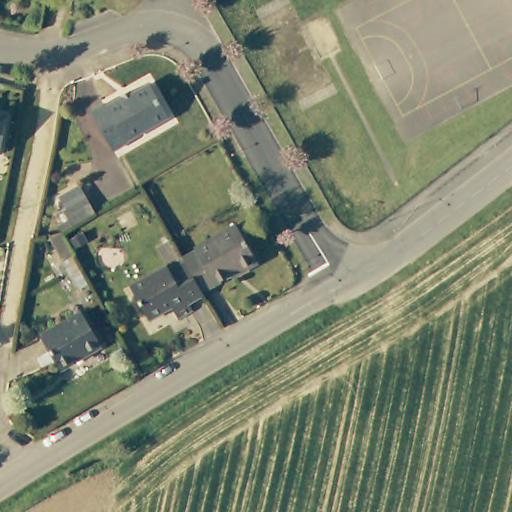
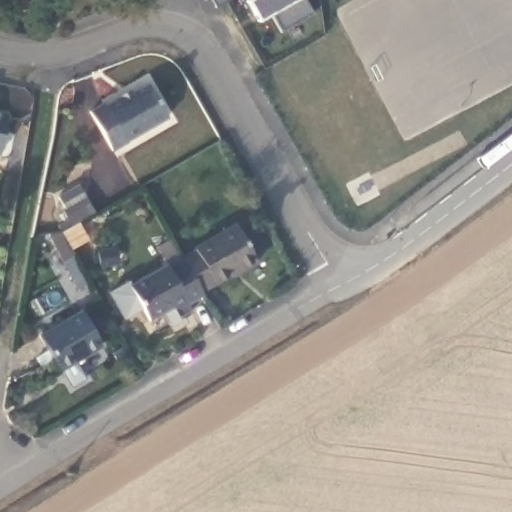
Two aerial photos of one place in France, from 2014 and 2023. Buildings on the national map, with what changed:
unchanged [(92,4),(86,11),(81,6),(86,0),(87,0),(92,4)]
new [(219,5),(216,0),(228,0),(219,5)]
new [(272,13),(259,19),(248,0),(249,0),(304,0),(313,14),(282,31),(272,13)]
unchanged [(167,115),(126,138),(127,141),(111,149),(89,110),(104,101),(106,104),(121,95),(132,89),(133,92),(149,84),(167,115)]
unchanged [(9,110),(4,152),(0,151),(0,109),(9,110)]
unchanged [(91,209),(66,223),(59,210),(84,196),(91,209)]
unchanged [(255,259),(239,268),(237,265),(200,285),(182,254),(195,247),(194,244),(234,223),(255,259)]
unchanged [(204,293),(202,295),(197,288),(186,296),(190,303),(176,311),(170,300),(147,313),(127,277),(163,257),(166,262),(182,254),(200,285),(204,293)]
unchanged [(95,343),(54,365),(36,331),(76,308),(95,343)]

